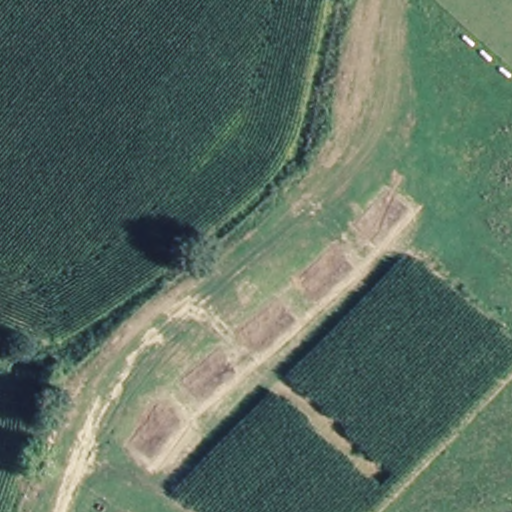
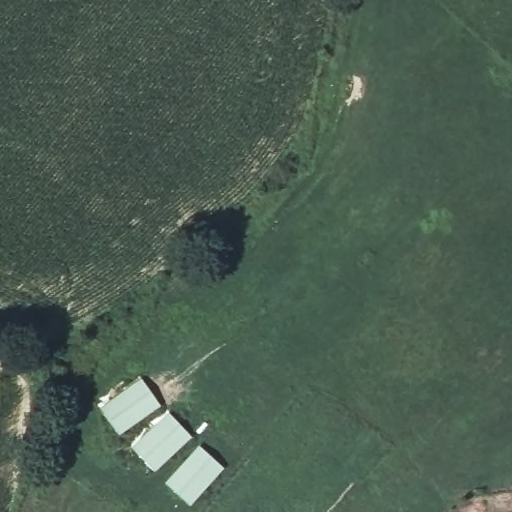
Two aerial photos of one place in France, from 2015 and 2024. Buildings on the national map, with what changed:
new [(140,378),(160,405),(120,435),(100,408),(140,378)]
new [(155,471),(131,447),(169,412),(191,438),(155,471)]
new [(200,445),(225,468),(190,506),(165,483),(200,445)]

